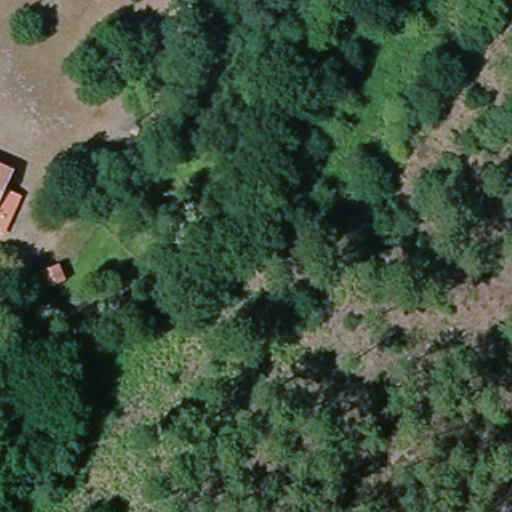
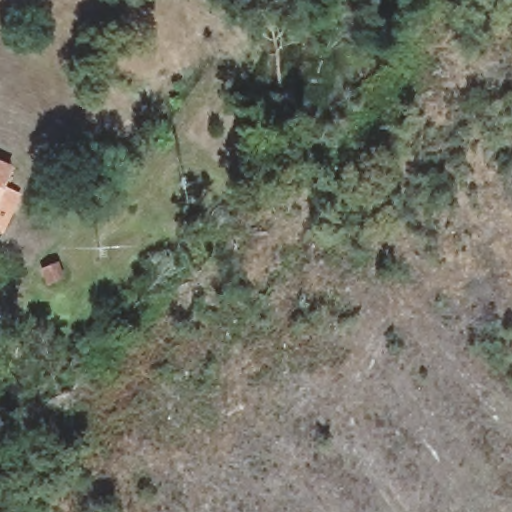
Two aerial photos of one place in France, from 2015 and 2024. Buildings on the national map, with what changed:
unchanged [(0,192),(0,167),(9,171),(0,192)]

